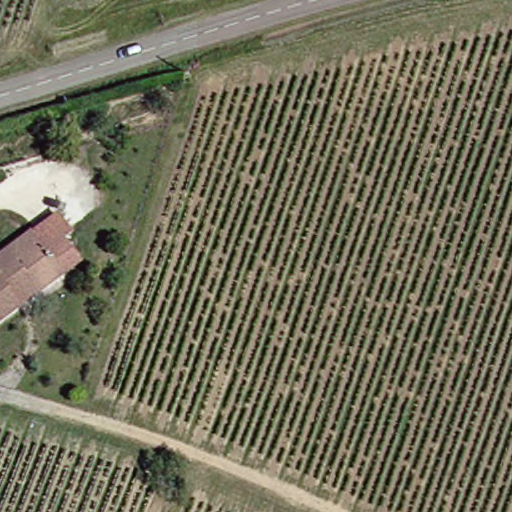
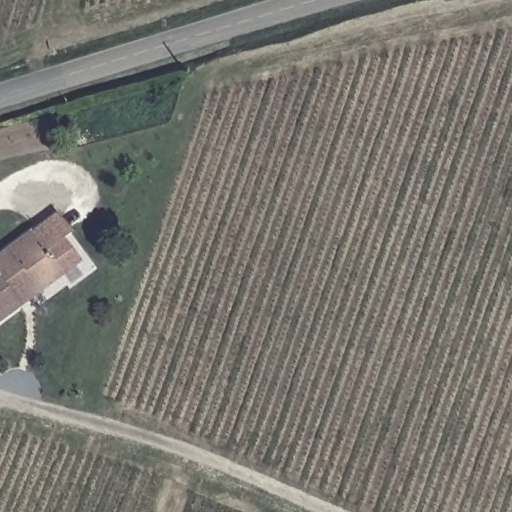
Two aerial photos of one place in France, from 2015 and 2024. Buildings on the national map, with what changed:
unchanged [(0,244),(53,205),(69,225),(57,235),(74,257),(51,274),(18,298),(0,311),(0,244)]

